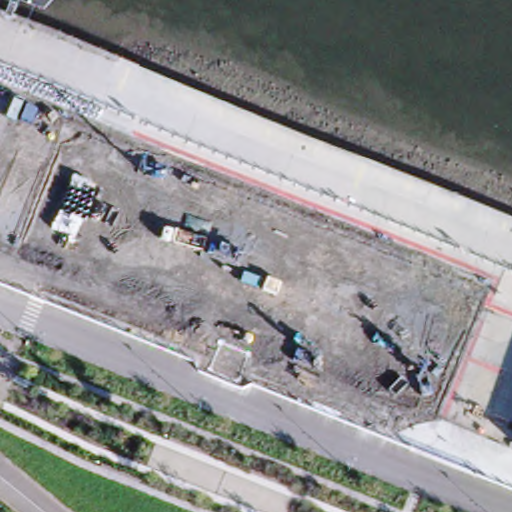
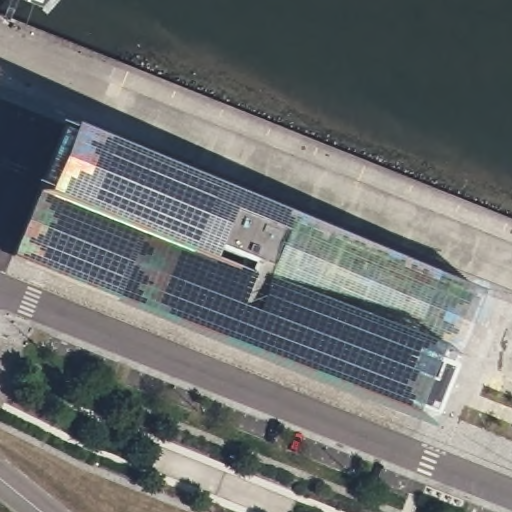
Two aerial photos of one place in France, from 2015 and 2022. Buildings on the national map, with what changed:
new [(456,359),(440,350),(434,362),(450,370),(431,418),(415,409),(412,420),(138,310),(12,255),(37,192),(63,129),(76,131),(292,218),(435,274),(484,292),(456,359)]

